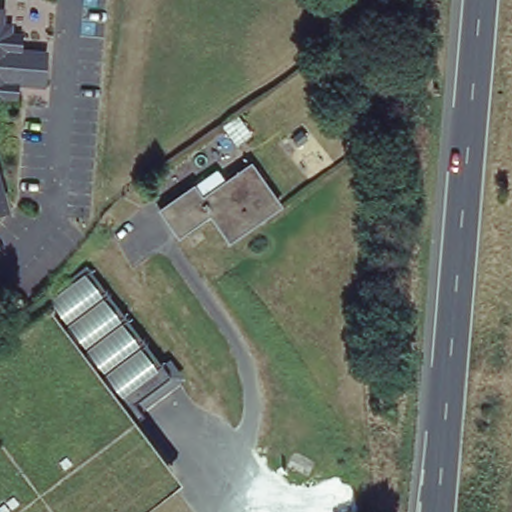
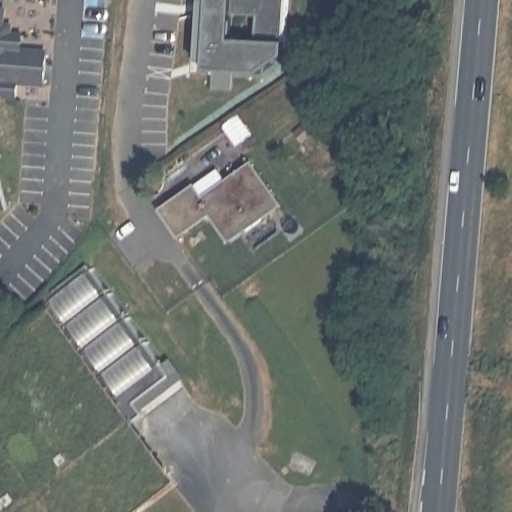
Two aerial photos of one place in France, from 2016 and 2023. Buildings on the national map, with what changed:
new [(261,72),(206,70),(207,61),(198,60),(200,19),(209,19),(210,1),(201,1),(201,0),(288,0),(286,54),(261,72)]
unchanged [(39,85),(13,84),(11,99),(0,98),(0,26),(5,26),(4,35),(16,35),(15,51),(41,54),(39,85)]
unchanged [(229,241),(225,235),(210,214),(179,237),(160,210),(193,188),(218,170),(226,183),(251,165),(275,200),(279,206),(229,241)]
unchanged [(0,211),(0,203),(2,210),(0,211)]
unchanged [(0,357),(0,331),(84,269),(176,383),(125,425),(48,322),(0,357)]
unchanged [(0,357),(48,322),(134,436),(102,461),(139,510),(136,512),(0,512),(0,357)]
unchanged [(134,436),(172,485),(139,510),(102,461),(134,436)]

